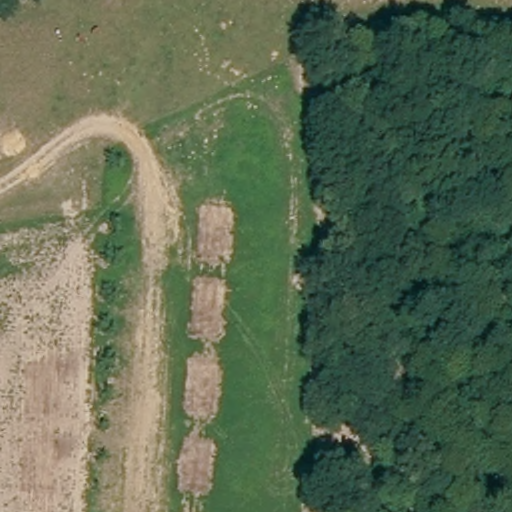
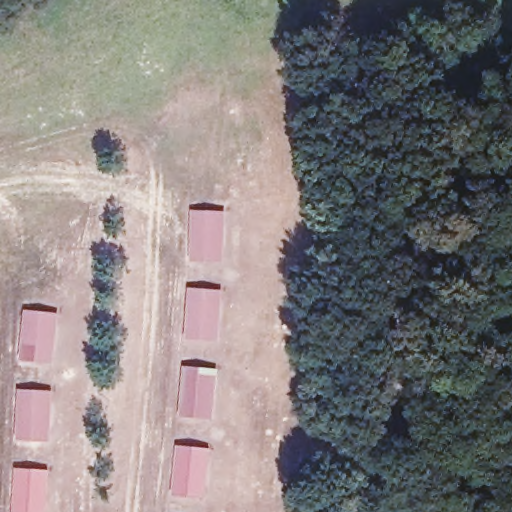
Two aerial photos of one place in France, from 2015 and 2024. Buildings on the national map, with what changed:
new [(190,209),(226,210),(224,262),(188,260),(190,209)]
new [(187,286),(224,289),(220,341),(183,338),(187,286)]
new [(24,308),(60,313),(53,364),(18,360),(24,308)]
new [(182,365),(220,368),(214,419),(178,416),(182,365)]
new [(17,387),(54,390),(51,441),(15,440),(17,387)]
new [(176,443),(213,448),(206,498),(170,494),(176,443)]
new [(13,466),(51,469),(47,512),(10,512),(13,466)]

